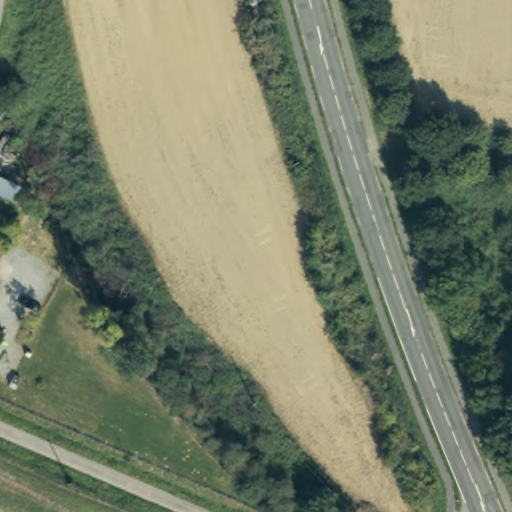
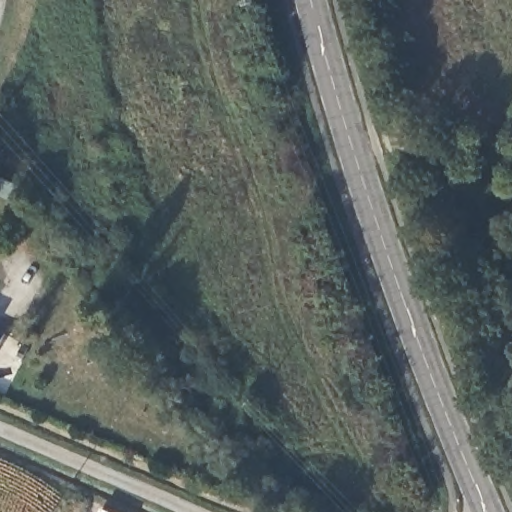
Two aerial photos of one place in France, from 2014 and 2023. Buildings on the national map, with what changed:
unchanged [(0,196),(0,176),(12,182),(4,199),(0,196)]
unchanged [(0,349),(0,331),(7,335),(0,349)]

